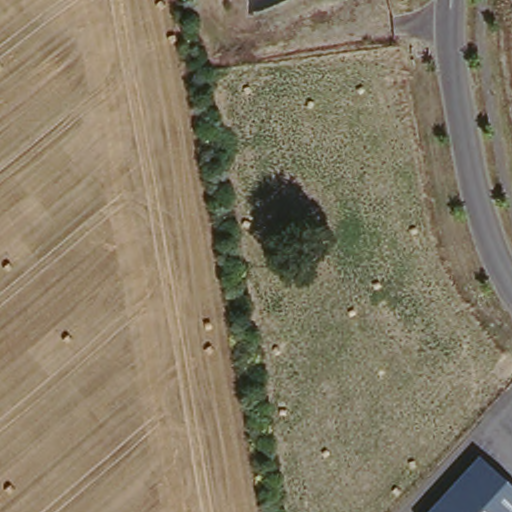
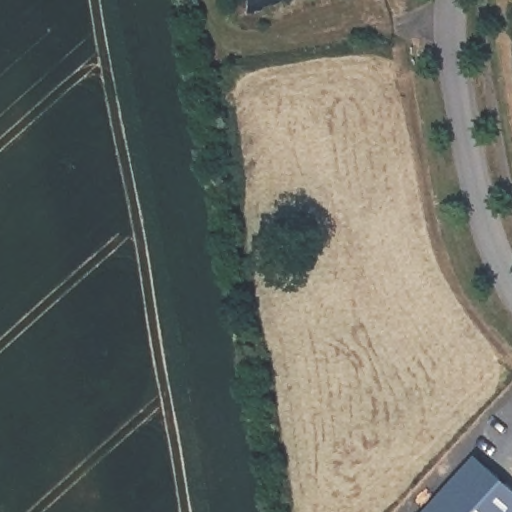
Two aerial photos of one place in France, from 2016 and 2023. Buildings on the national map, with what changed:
unchanged [(512,512),(428,512),(478,457),(512,487),(512,512)]

